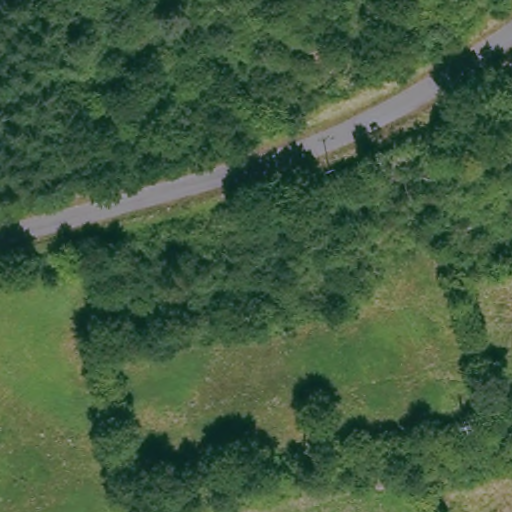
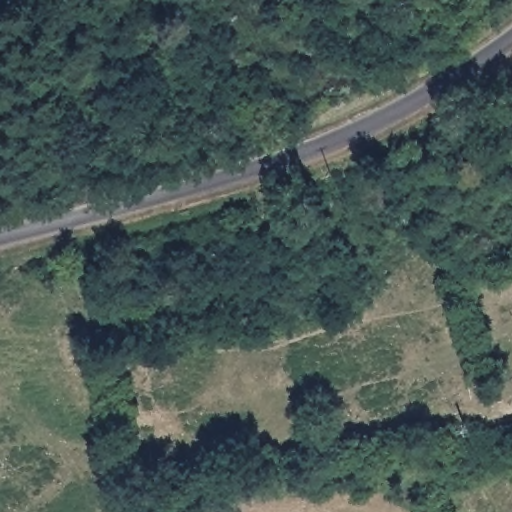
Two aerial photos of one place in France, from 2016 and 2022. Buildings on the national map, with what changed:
[]

